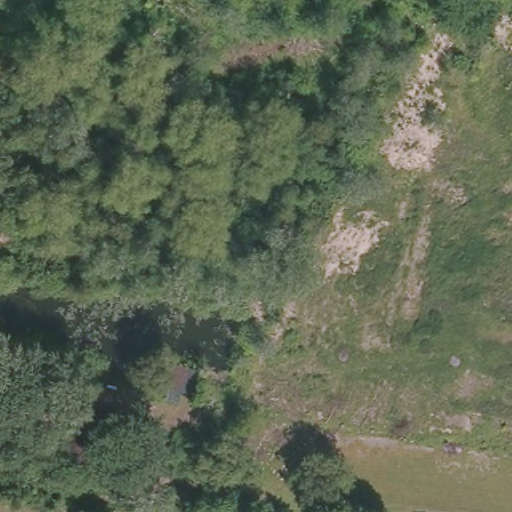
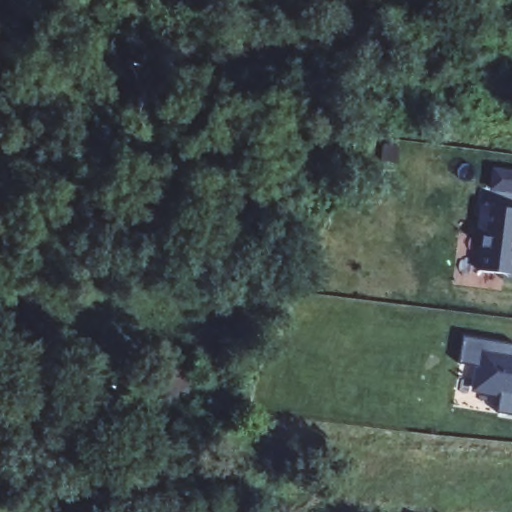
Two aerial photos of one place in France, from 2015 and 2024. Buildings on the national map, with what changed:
new [(512,193),(493,190),(496,171),(512,173),(512,193)]
new [(512,282),(505,280),(505,275),(481,272),(485,234),(481,234),(484,207),(512,211),(512,282)]
new [(501,396),(472,392),(476,366),(460,363),(465,337),(512,345),(512,415),(498,412),(501,396)]

